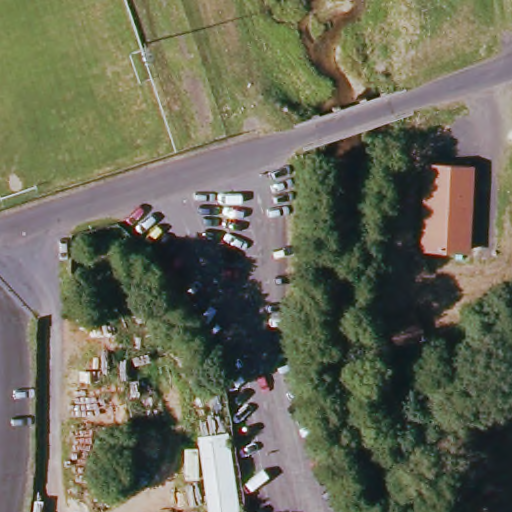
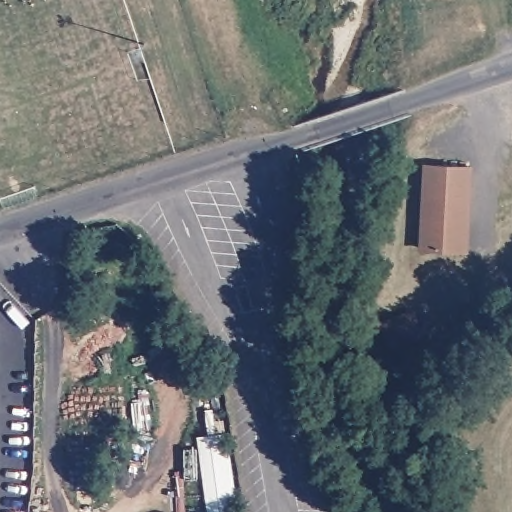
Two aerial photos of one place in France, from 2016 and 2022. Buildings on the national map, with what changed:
unchanged [(467,254),(418,252),(422,163),(472,165),(467,254)]
unchanged [(419,335),(386,346),(377,322),(410,312),(419,335)]
unchanged [(230,432),(242,512),(208,512),(198,437),(230,432)]

